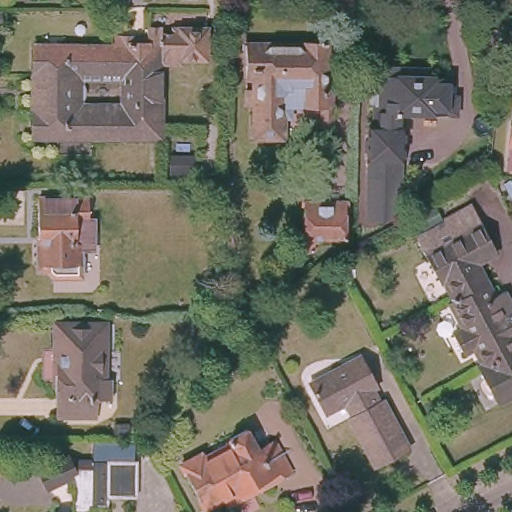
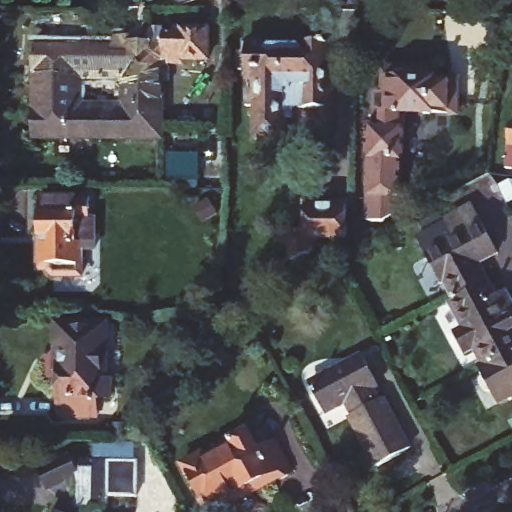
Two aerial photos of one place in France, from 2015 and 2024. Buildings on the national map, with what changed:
unchanged [(204,59),(180,59),(180,64),(161,64),(161,137),(32,136),(33,42),(112,42),(112,34),(146,34),(146,27),(162,27),(162,33),(170,33),(170,27),(205,27),(204,59)]
unchanged [(317,127),(317,109),(291,109),(291,118),(283,118),(283,138),(251,139),(252,106),(241,105),(242,90),(252,90),(252,79),(242,79),(242,69),(235,69),(235,51),(243,51),(244,41),(328,43),(327,46),(325,46),(325,51),(327,51),(327,64),(325,64),(324,71),(333,76),(333,81),(331,81),(330,127),(317,127)]
unchanged [(454,91),(464,91),(463,111),(408,110),(405,207),(390,218),(372,217),(375,122),(379,122),(380,87),(388,87),(388,63),(412,65),(435,66),(435,73),(454,74),(454,91)]
unchanged [(507,122),(512,122),(512,167),(503,166),(507,122)]
unchanged [(33,192),(83,193),(85,214),(90,214),(90,244),(89,244),(76,244),(76,267),(76,271),(48,271),(43,266),(33,257),(33,232),(33,192)]
unchanged [(341,240),(316,239),(315,245),(309,245),(308,254),(283,262),(285,230),(299,231),(300,204),(341,205),(341,240)]
unchanged [(479,365),(483,362),(475,347),(465,352),(454,332),(465,326),(452,301),(454,301),(452,297),(455,295),(447,282),(443,284),(418,238),(445,223),(444,221),(473,206),(497,252),(478,262),(496,295),(506,290),(512,301),(512,394),(498,401),(479,365)]
unchanged [(103,315),(103,371),(109,372),(108,377),(108,391),(95,391),(95,401),(95,407),(62,407),(61,407),(61,409),(55,409),(57,378),(55,378),(55,370),(48,370),(48,345),(55,345),(55,315),(93,315),(103,315)]
unchanged [(379,462),(351,410),(355,409),(348,397),(326,408),(311,381),(365,352),(378,379),(373,383),(379,396),(383,394),(410,445),(379,462)]
unchanged [(223,502),(221,496),(197,508),(170,461),(192,451),(195,454),(205,449),(223,440),(221,436),(235,429),(247,450),(266,440),(269,444),(266,445),(278,468),(281,467),(283,471),(261,482),(232,497),(223,502)]
unchanged [(137,456),(136,492),(105,492),(105,503),(90,503),(89,508),(72,508),(72,488),(67,485),(64,478),(45,487),(37,468),(64,456),(93,455),(93,456),(137,456)]
unchanged [(60,512),(53,512),(55,509),(60,512)]

